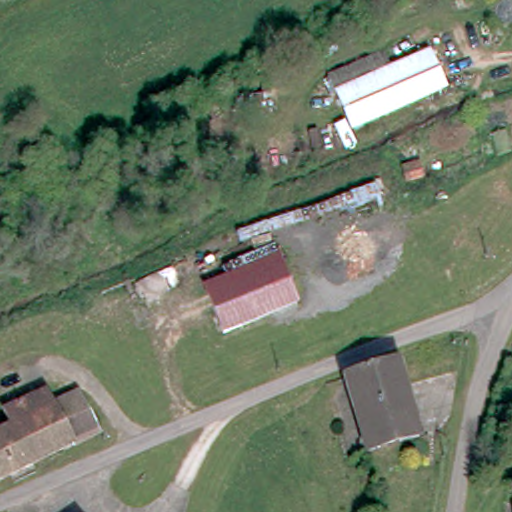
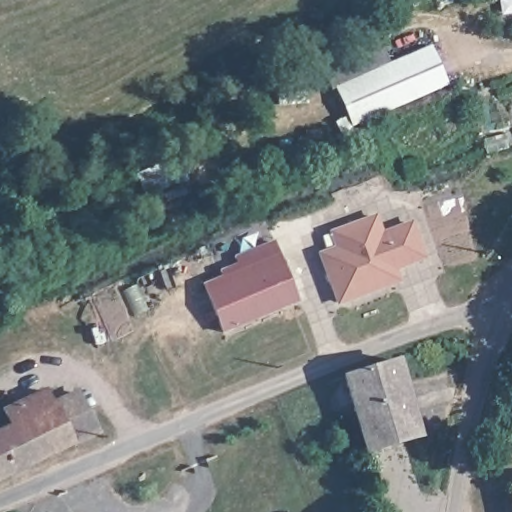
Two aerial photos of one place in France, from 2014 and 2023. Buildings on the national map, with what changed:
unchanged [(435,46),(454,84),(360,128),(342,90),(435,46)]
new [(383,231),(412,220),(426,258),(396,270),(401,282),(337,305),(316,252),(334,246),(329,232),(375,214),(383,231)]
new [(248,280),(210,298),(204,285),(222,277),(220,270),(236,264),(234,257),(274,241),(284,264),(248,280)]
unchanged [(282,314),(270,320),(248,280),(284,264),(299,297),(302,305),(282,314)]
unchanged [(229,338),(210,298),(248,280),(270,320),(229,338)]
unchanged [(427,436),(378,451),(355,376),(405,359),(427,436)]
unchanged [(0,439),(14,433),(7,419),(50,397),(75,385),(82,398),(102,436),(0,485),(0,439)]

